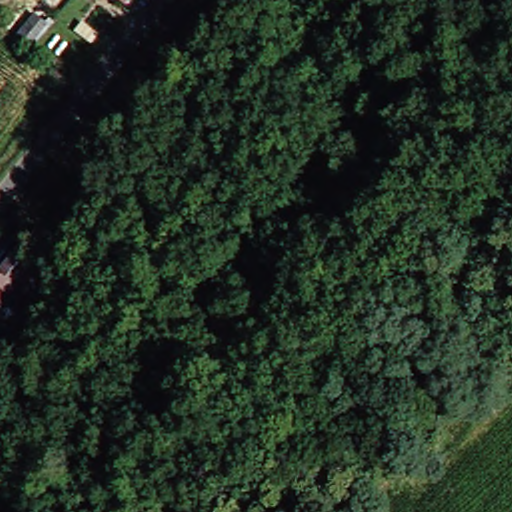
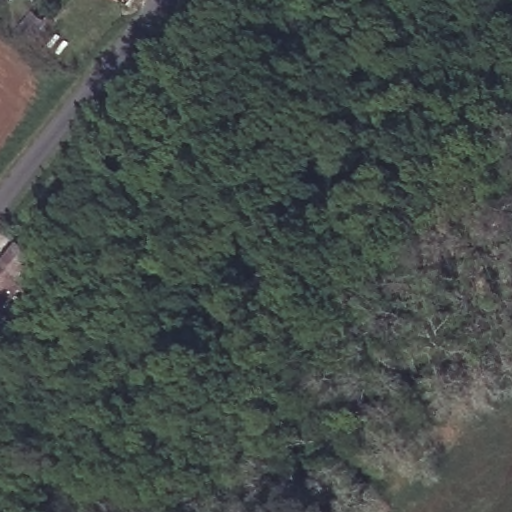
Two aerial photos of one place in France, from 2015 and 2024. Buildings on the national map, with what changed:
unchanged [(46,20),(30,45),(20,36),(38,12),(46,20)]
unchanged [(27,247),(52,265),(33,295),(0,342),(0,273),(6,278),(27,247)]

